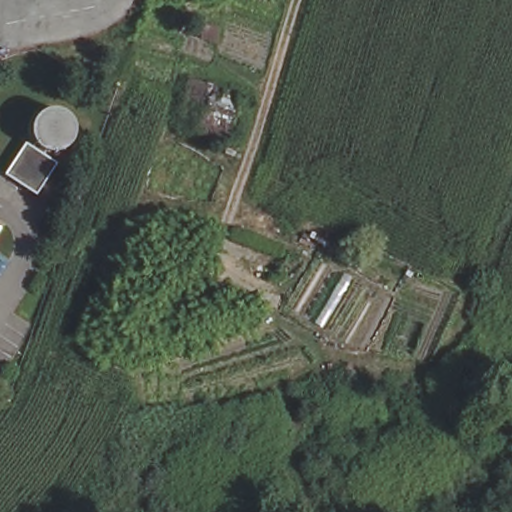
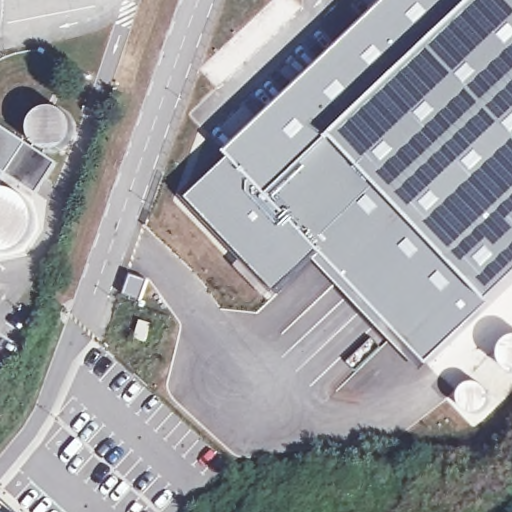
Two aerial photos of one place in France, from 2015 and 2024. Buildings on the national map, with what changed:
new [(225,152),(386,0),(475,0),(332,138),(492,304),(465,331),(419,371),(313,261),(276,294),(242,260),(185,198),(230,158),(225,152)]
new [(512,0),(512,284),(492,304),(332,138),(475,0),(512,0)]
demolished [(244,92),(227,139),(177,124),(191,78),(244,92)]
unchanged [(5,179),(26,147),(33,152),(35,148),(34,146),(33,144),(32,142),(32,140),(31,139),(31,138),(31,136),(31,134),(31,133),(31,131),(31,130),(32,129),(32,127),(33,125),(33,124),(34,123),(35,121),(36,120),(37,119),(38,119),(39,118),(40,116),(42,116),(43,115),(44,114),(46,114),(47,114),(49,113),(50,113),(52,113),(53,113),(55,113),(56,114),(58,114),(59,114),(61,114),(62,115),(63,116),(65,117),(66,118),(67,119),(68,119),(69,121),(70,122),(71,123),(72,124),(72,126),(73,128),(73,129),(74,130),(74,131),(74,133),(74,134),(74,136),(74,138),(74,139),(73,140),(73,142),(72,144),(71,145),(71,146),(70,148),(69,149),(68,149),(67,151),(66,152),(64,153),(63,154),(62,154),(60,154),(59,155),(57,155),(56,156),(55,156),(53,156),(51,156),(50,156),(47,155),(44,159),(57,168),(37,199),(5,179)]
unchanged [(6,224),(0,232),(0,220),(6,224)]
demolished [(168,304),(178,274),(209,278),(202,305),(168,304)]
new [(152,324),(146,342),(136,339),(141,321),(152,324)]

